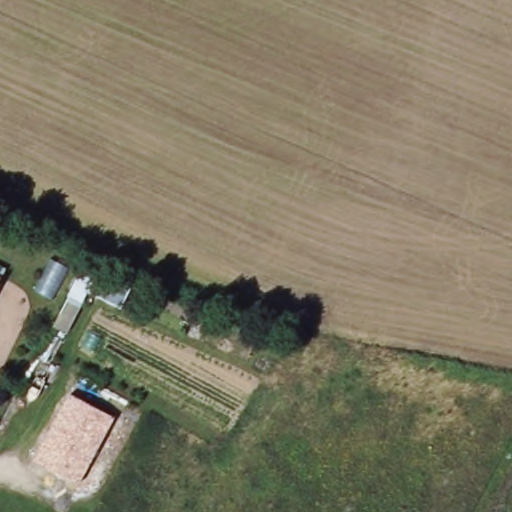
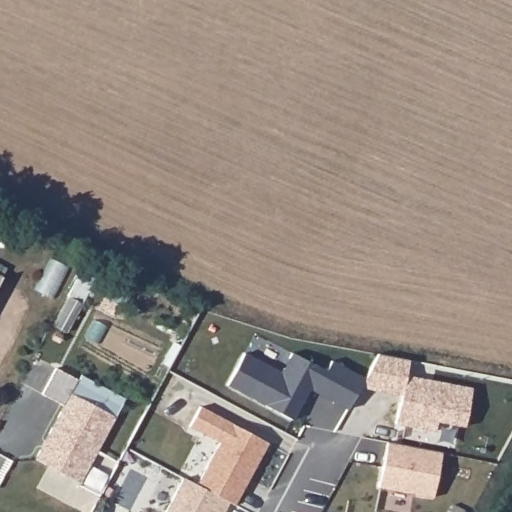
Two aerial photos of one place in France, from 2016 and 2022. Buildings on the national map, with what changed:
new [(88,294),(67,334),(53,326),(80,271),(96,278),(88,294)]
unchanged [(1,273),(0,274),(0,272),(1,273)]
new [(131,291),(121,311),(88,294),(98,274),(131,291)]
new [(348,409),(334,402),(308,388),(305,394),(292,419),(227,384),(244,352),(281,372),(292,352),(325,370),(331,360),(351,371),(365,378),(348,409)]
new [(471,387),(465,427),(437,422),(435,432),(395,425),(401,395),(360,388),(365,378),(377,355),(409,361),(406,375),(471,387)]
new [(71,397),(66,406),(44,392),(56,370),(76,381),(79,375),(125,400),(114,419),(71,397)]
unchanged [(80,485),(35,462),(71,397),(114,419),(80,485)]
new [(196,486),(219,443),(189,426),(200,405),(267,442),(232,507),(226,504),(223,512),(165,512),(183,477),(196,486)]
new [(441,453),(433,497),(379,488),(387,442),(441,453)]

